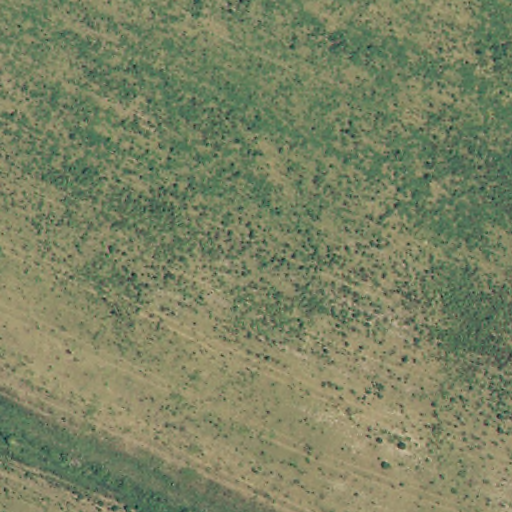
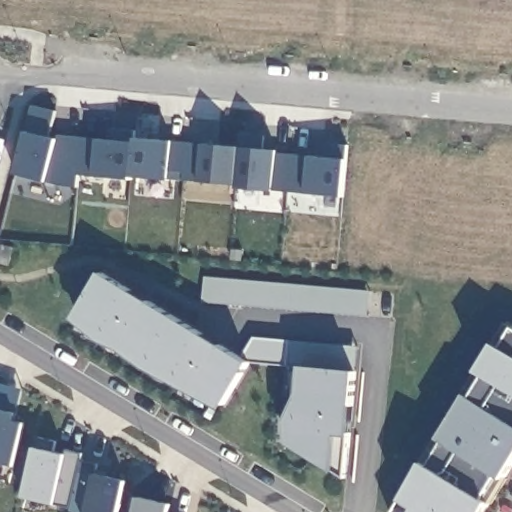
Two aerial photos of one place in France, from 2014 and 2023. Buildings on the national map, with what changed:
new [(348,159),(346,196),(275,189),(201,180),(186,179),(185,172),(172,170),(171,180),(94,174),(81,172),(80,187),(69,187),(46,180),(17,172),(28,128),(32,104),(59,110),(54,136),(100,136),(100,130),(135,132),(134,137),(204,143),(321,156),(319,142),(350,145),(348,159)]
new [(16,249),(11,265),(0,262),(0,256),(3,245),(16,249)]
new [(94,271),(234,357),(246,337),(283,340),(280,365),(240,361),(214,403),(68,312),(94,271)]
new [(204,276),(371,291),(369,316),(202,301),(204,276)]
new [(506,478),(500,475),(486,497),(492,500),(485,512),(412,512),(415,507),(401,499),(423,461),(433,467),(444,441),(438,438),(465,393),(473,397),(488,377),(479,370),(496,342),(505,348),(512,331),(512,467),(506,478)]
new [(283,340),(351,346),(349,371),(293,366),(280,365),(283,340)]
new [(293,366),(349,371),(339,477),(286,445),(293,366)]
new [(0,408),(15,412),(14,420),(23,422),(13,465),(0,461),(0,408)]
new [(54,502),(53,507),(21,500),(33,445),(35,435),(56,440),(54,451),(64,453),(65,448),(84,452),(82,460),(99,464),(98,472),(125,478),(118,512),(68,512),(69,506),(54,502)]
new [(170,503),(168,512),(132,512),(135,495),(170,503)]

